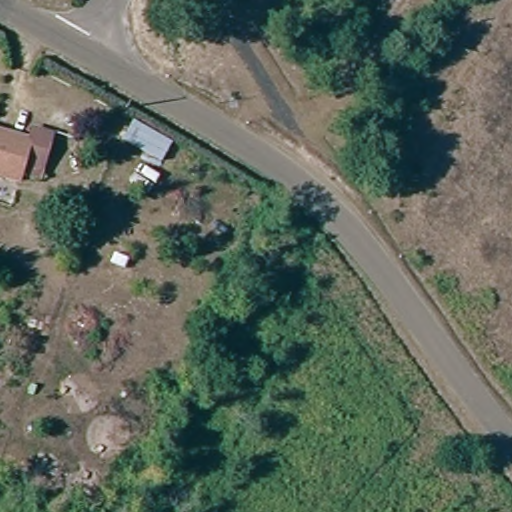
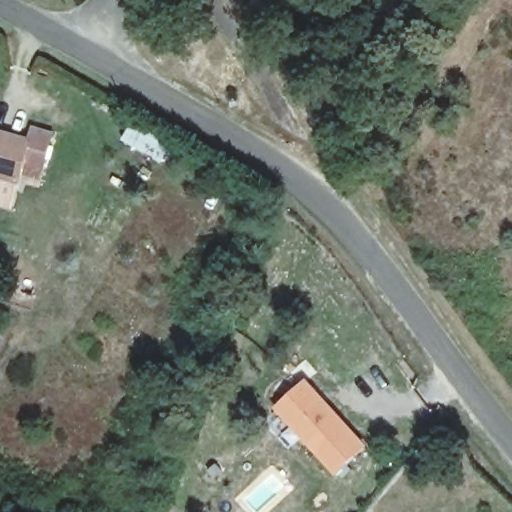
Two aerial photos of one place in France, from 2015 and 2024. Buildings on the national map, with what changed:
unchanged [(22,151),(31,132),(56,144),(41,177),(16,165),(5,188),(0,185),(0,141),(22,151)]
new [(367,445),(335,476),(273,407),(306,377),(367,445)]

